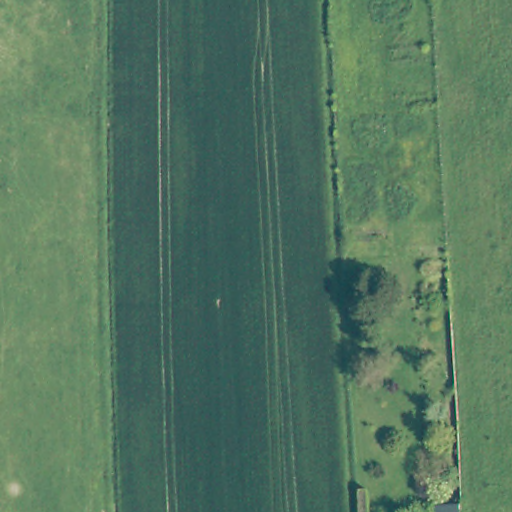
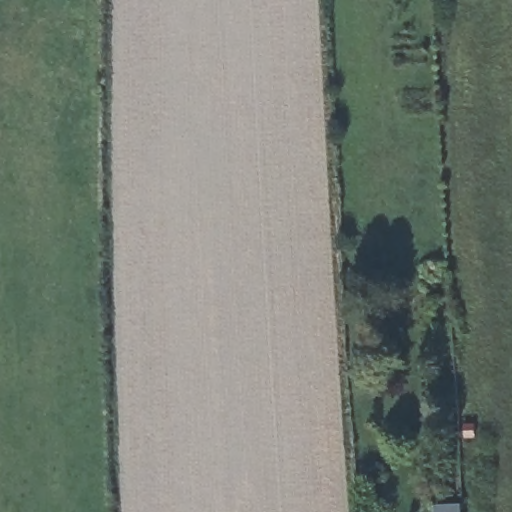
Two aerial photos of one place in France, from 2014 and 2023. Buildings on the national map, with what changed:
unchanged [(438,506),(463,505),(464,512),(439,512),(438,506)]

